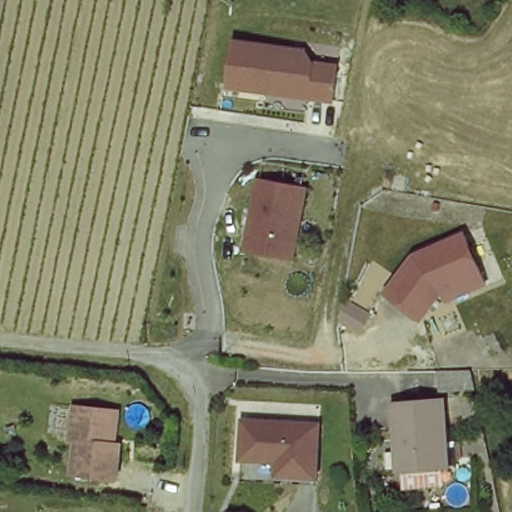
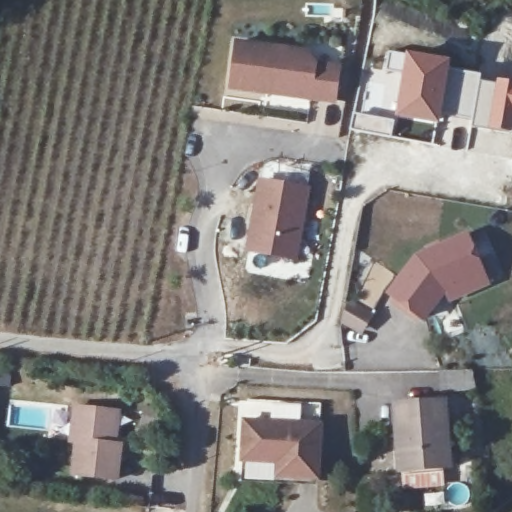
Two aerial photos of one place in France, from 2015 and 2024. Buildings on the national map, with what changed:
unchanged [(334,102),(226,87),(231,35),(303,45),(310,60),(340,64),(334,102)]
new [(387,50),(451,59),(450,69),(442,114),(440,123),(395,115),(401,74),(384,70),(387,50)]
new [(510,80),(512,80),(512,115),(507,114),(504,131),(486,130),(471,126),(472,119),(442,114),(450,69),(481,74),(480,80),(495,82),(496,78),(510,80)]
unchanged [(305,189),(292,258),(247,250),(259,181),(305,189)]
unchanged [(445,296),(440,287),(438,288),(417,316),(383,290),(411,253),(461,231),(477,271),(481,280),(445,296)]
unchanged [(463,366),(467,385),(431,388),(430,366),(463,366)]
unchanged [(435,426),(448,425),(447,437),(452,437),(453,455),(448,454),(450,463),(435,465),(436,482),(398,486),(397,468),(391,467),(387,405),(433,400),(435,426)]
unchanged [(115,408),(111,441),(117,442),(113,476),(71,471),(75,438),(69,437),(72,403),(115,408)]
unchanged [(319,476),(280,475),(279,460),(242,459),(243,420),(320,421),(319,476)]

